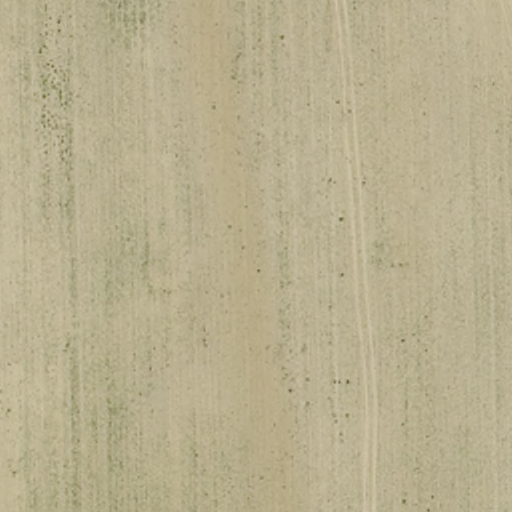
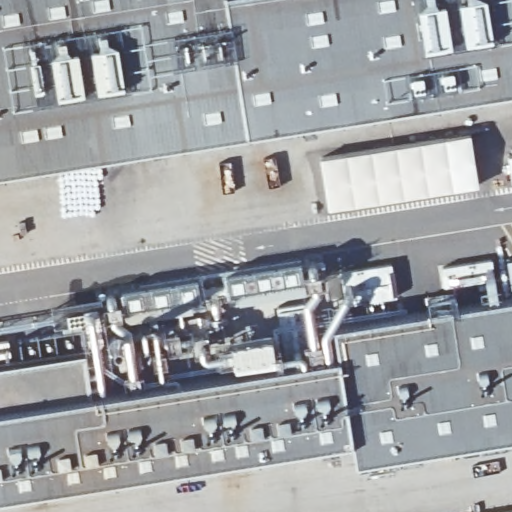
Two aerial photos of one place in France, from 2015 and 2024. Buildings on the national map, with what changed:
new [(0,174),(0,0),(512,0),(512,93),(0,174)]
new [(322,157),(471,134),(479,187),(331,209),(322,157)]
new [(512,155),(512,170),(510,155),(512,155)]
new [(509,261),(512,261),(512,276),(509,261)]
new [(354,441),(0,497),(0,344),(56,335),(54,325),(51,310),(108,302),(107,296),(200,282),(303,265),(308,293),(241,304),(240,296),(193,302),(194,312),(130,321),(142,388),(240,372),(238,360),(234,342),(278,334),(280,352),(284,366),(339,358),(334,329),(431,313),(429,300),(453,295),(456,308),(512,300),(512,439),(358,465),(354,441)]
new [(499,512),(512,510),(512,512),(499,512)]

